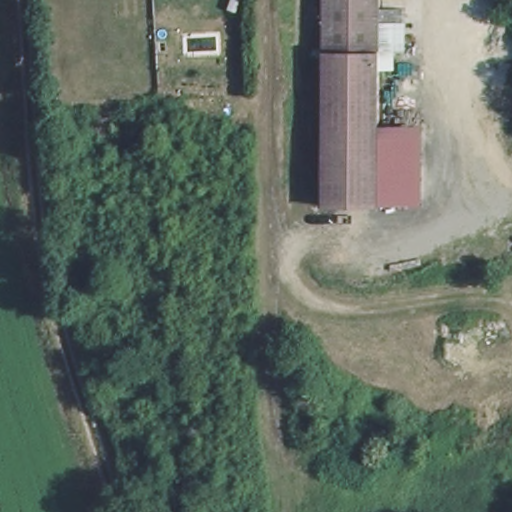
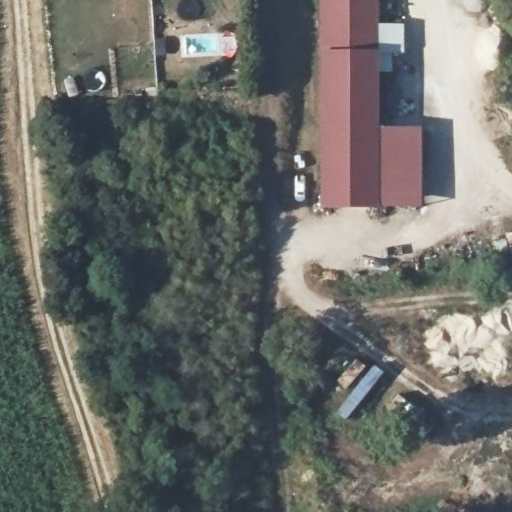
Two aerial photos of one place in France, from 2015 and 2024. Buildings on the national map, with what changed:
unchanged [(318,210),(315,0),(378,0),(381,122),(420,122),(422,207),(318,210)]

